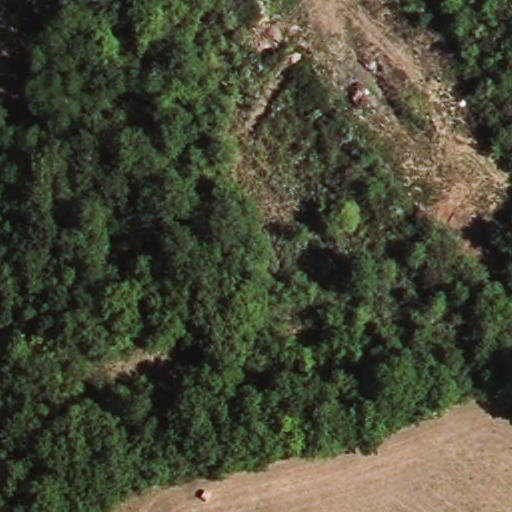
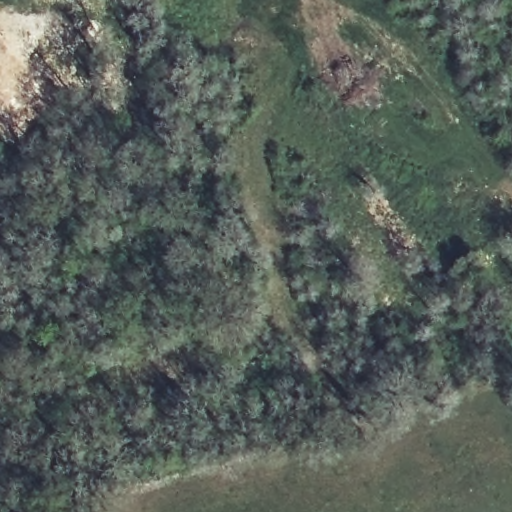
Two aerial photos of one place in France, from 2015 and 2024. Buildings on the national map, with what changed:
[]

